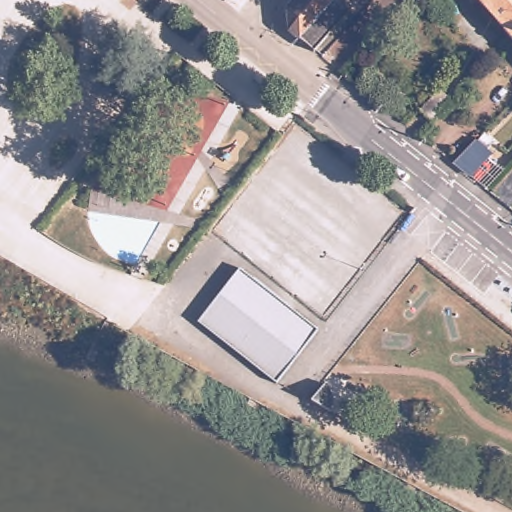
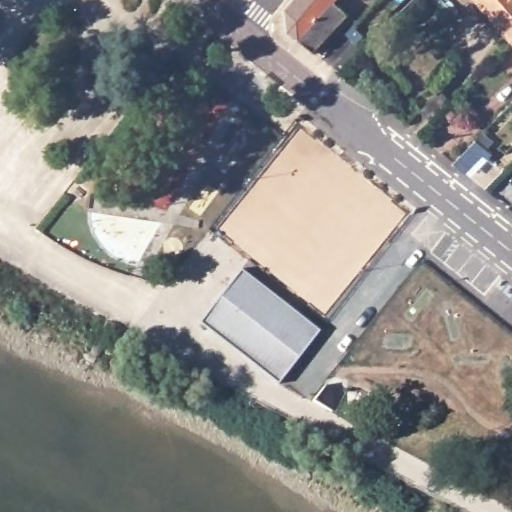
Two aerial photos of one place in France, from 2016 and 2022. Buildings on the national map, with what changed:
unchanged [(290,34),(287,31),(284,14),(295,0),(335,0),(298,41),(290,34)]
unchanged [(348,16),(314,54),(298,41),(335,0),(346,0),(340,9),(348,16)]
unchanged [(359,0),(367,0),(366,1),(359,0)]
unchanged [(476,0),(512,0),(512,39),(476,0)]
unchanged [(450,103),(431,122),(420,111),(440,92),(450,103)]
unchanged [(491,157),(472,180),(452,165),(474,142),(491,157)]
unchanged [(241,270),(316,328),(276,380),(200,320),(241,270)]
unchanged [(352,373),(355,378),(356,384),(356,389),(356,395),(353,399),(333,388),(352,373)]

